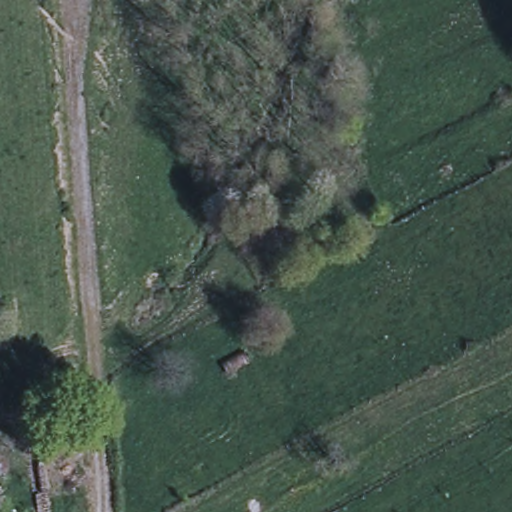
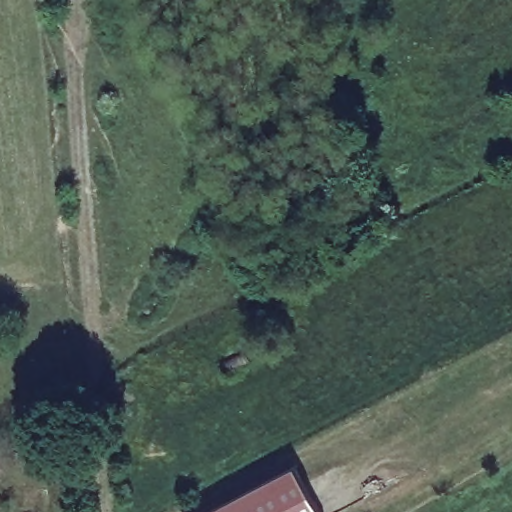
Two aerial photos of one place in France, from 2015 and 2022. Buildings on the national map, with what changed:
new [(319,512),(207,512),(295,466),(319,512)]

